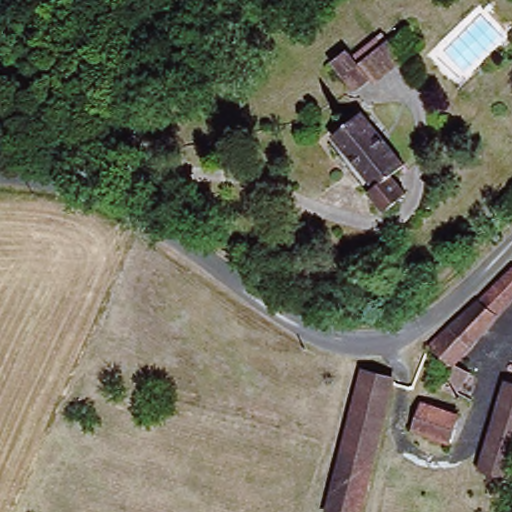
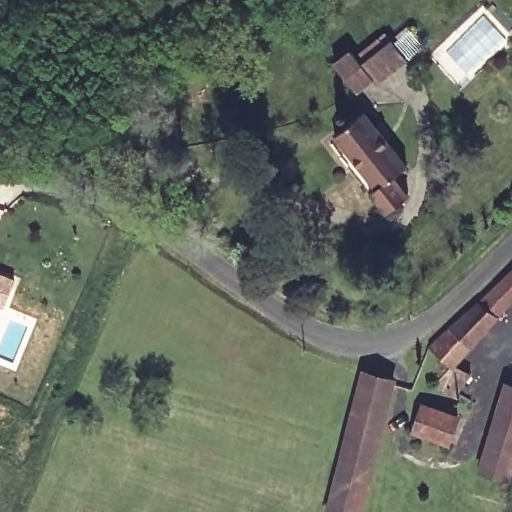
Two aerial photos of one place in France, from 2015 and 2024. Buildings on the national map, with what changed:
unchanged [(376,38),(383,32),(390,39),(403,56),(372,82),(362,91),(337,59),(353,46),(359,53),(376,38)]
unchanged [(368,106),(411,159),(398,169),(412,187),(390,205),(375,188),(380,183),(338,131),(368,106)]
unchanged [(445,366),(418,337),(471,304),(484,294),(507,269),(512,264),(512,298),(445,366)]
new [(3,307),(0,305),(0,271),(15,278),(3,307)]
unchanged [(442,394),(428,383),(445,366),(458,377),(442,394)]
unchanged [(372,372),(402,381),(371,492),(365,512),(334,512),(332,512),(340,484),(372,372)]
unchanged [(501,406),(507,391),(512,393),(512,410),(501,406)]
unchanged [(416,431),(427,399),(463,411),(450,443),(416,431)]
unchanged [(485,467),(507,413),(512,414),(512,476),(485,467)]

